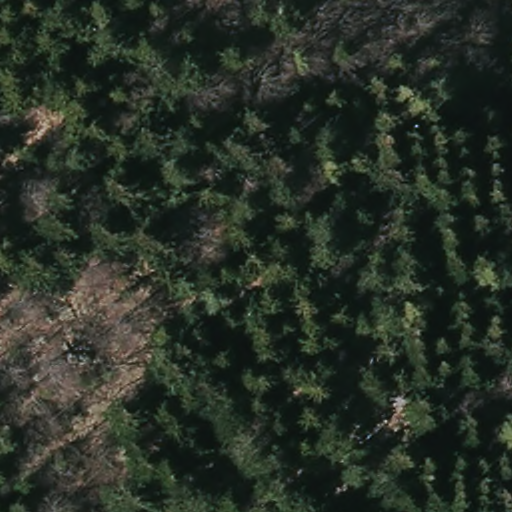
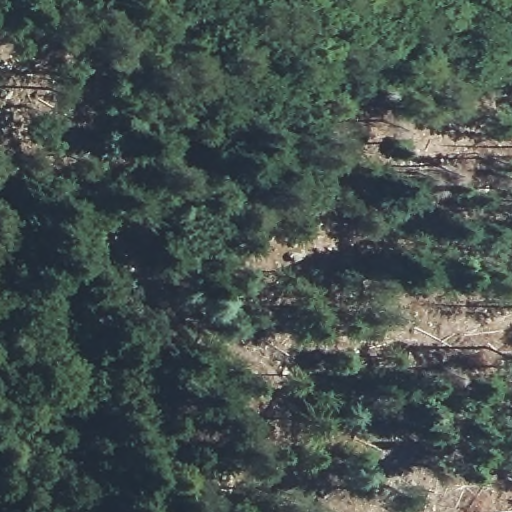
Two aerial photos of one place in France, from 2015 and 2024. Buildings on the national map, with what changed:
[]

